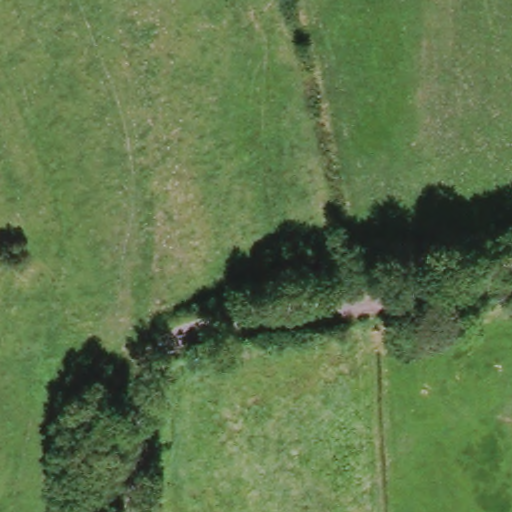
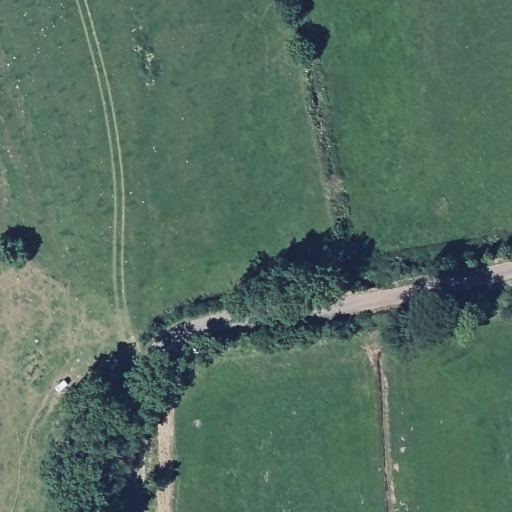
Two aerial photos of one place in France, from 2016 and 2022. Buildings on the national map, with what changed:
[]

